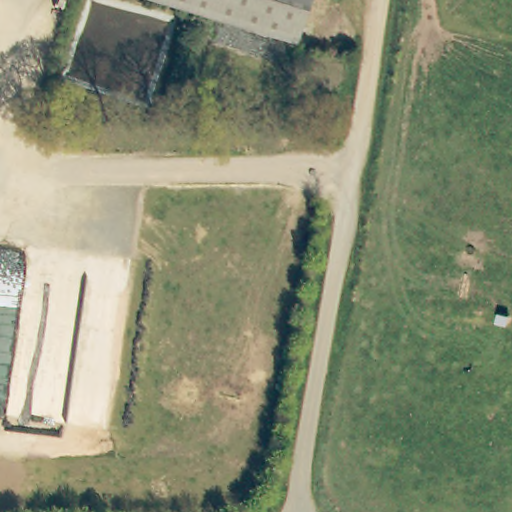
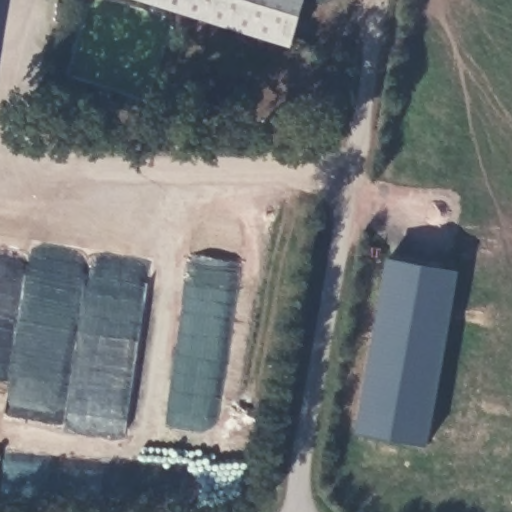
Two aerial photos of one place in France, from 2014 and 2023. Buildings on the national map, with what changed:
unchanged [(174,0),(301,0),(290,37),(174,0)]
new [(431,447),(356,432),(387,257),(460,271),(431,447)]

